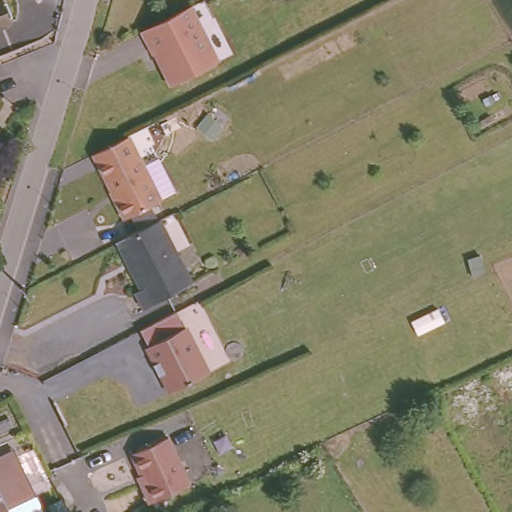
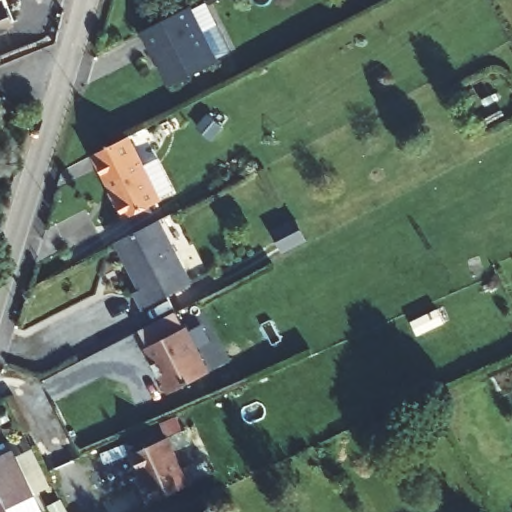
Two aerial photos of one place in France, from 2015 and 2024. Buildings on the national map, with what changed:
unchanged [(0,3),(8,26),(0,29),(0,3)]
unchanged [(187,15),(213,70),(168,94),(158,73),(159,69),(155,60),(151,62),(138,39),(187,15)]
unchanged [(122,142),(154,204),(117,222),(108,204),(111,202),(90,158),(122,142)]
unchanged [(159,220),(191,282),(143,308),(133,291),(139,287),(115,242),(159,220)]
unchanged [(174,312),(192,342),(207,374),(169,392),(160,375),(158,377),(151,365),(155,363),(139,331),(174,312)]
unchanged [(165,436),(187,483),(147,502),(139,485),(143,484),(128,453),(165,436)]
unchanged [(18,445),(22,454),(40,493),(18,500),(11,501),(0,505),(0,449),(18,445)]

